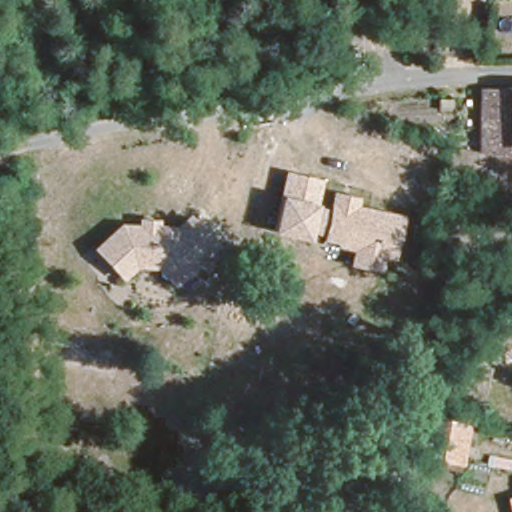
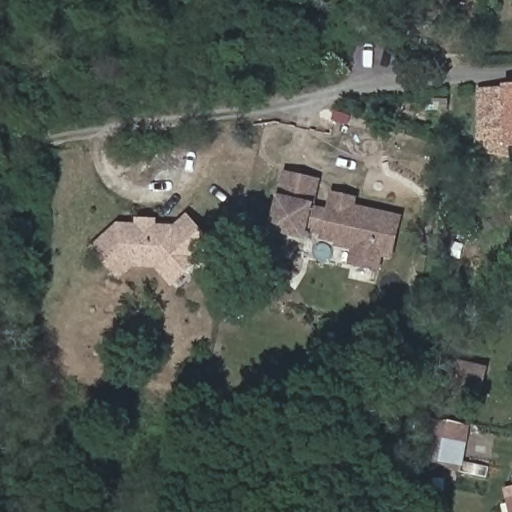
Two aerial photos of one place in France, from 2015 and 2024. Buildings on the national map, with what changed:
unchanged [(484,89),(512,85),(512,140),(509,140),(511,155),(492,153),(477,151),(474,90),(484,89)]
unchanged [(392,259),(384,259),(382,273),(348,267),(351,249),(269,232),(284,170),(322,179),(316,201),(328,201),(330,190),(359,196),(357,205),(403,214),(392,259)]
unchanged [(133,269),(122,278),(90,247),(120,223),(135,223),(137,217),(159,217),(158,224),(174,224),(188,213),(217,248),(172,288),(156,268),(133,269)]
unchanged [(461,358),(488,364),(480,398),(453,392),(461,358)]
unchanged [(437,412),(471,422),(461,464),(427,454),(437,412)]
unchanged [(512,496),(512,512),(509,512),(505,497),(512,496)]

